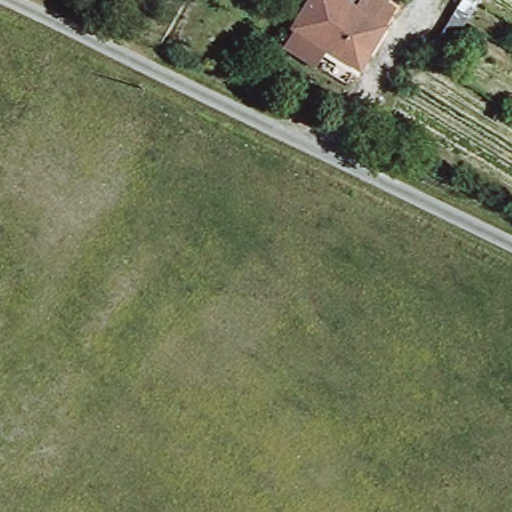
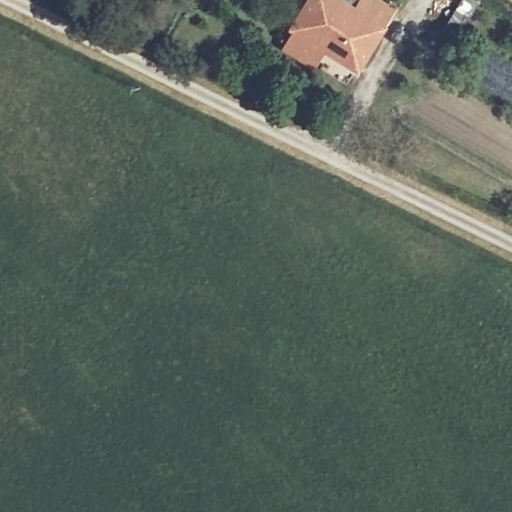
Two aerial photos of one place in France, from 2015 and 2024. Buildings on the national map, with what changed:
unchanged [(281,35),(294,18),(291,16),(302,0),(391,0),(392,1),(353,59),(322,38),(309,55),(281,35)]
unchanged [(486,7),(453,57),(442,49),(473,0),(486,7)]

